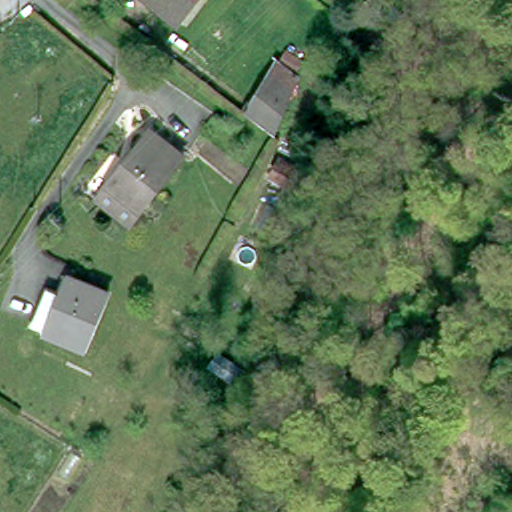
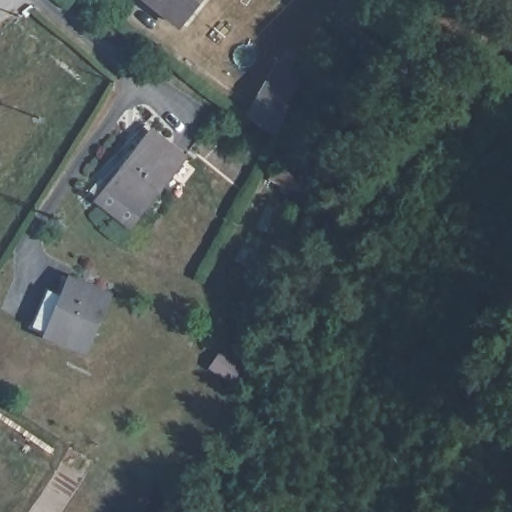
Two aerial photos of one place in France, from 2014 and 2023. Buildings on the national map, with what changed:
unchanged [(183,20),(159,0),(197,0),(183,20)]
unchanged [(285,55),(307,65),(280,132),(247,113),(285,55)]
unchanged [(185,155),(132,226),(100,202),(155,130),(185,155)]
unchanged [(86,348),(48,331),(72,276),(110,292),(86,348)]

